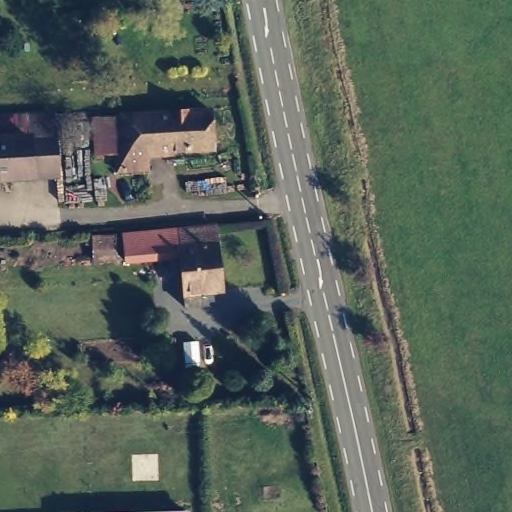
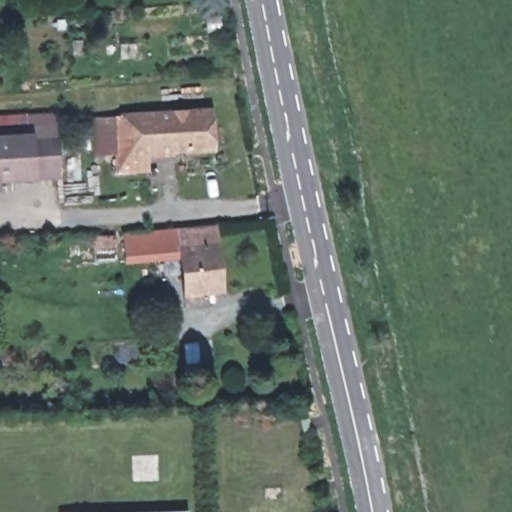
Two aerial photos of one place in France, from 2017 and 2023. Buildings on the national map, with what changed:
unchanged [(106,151),(105,113),(125,112),(222,107),(225,145),(182,147),(182,146),(171,147),(171,138),(155,140),(158,165),(128,168),(127,150),(106,151)]
unchanged [(18,120),(20,135),(20,144),(0,145),(0,121),(18,120)]
unchanged [(20,144),(20,135),(44,133),(47,180),(22,182),(20,144)]
unchanged [(0,183),(0,145),(20,144),(22,182),(0,183)]
unchanged [(187,257),(132,262),(129,234),(185,229),(185,233),(221,229),(227,291),(212,292),(214,306),(191,309),(190,294),(187,257)]
unchanged [(113,238),(117,261),(96,263),(92,239),(113,238)]

